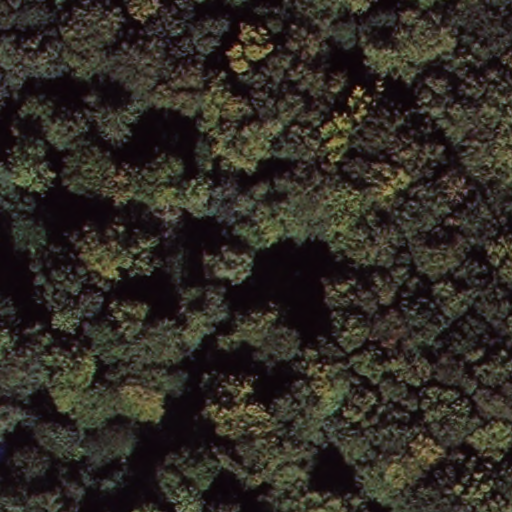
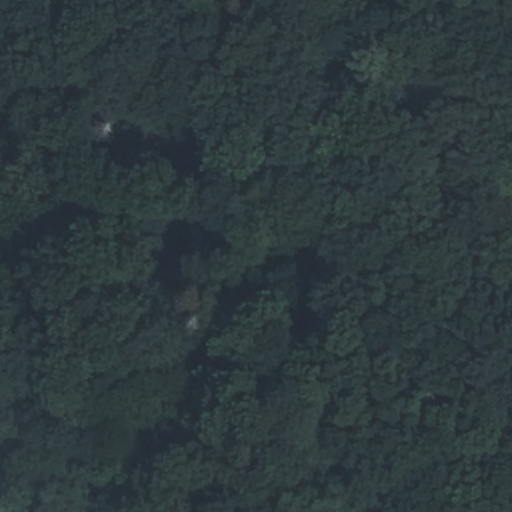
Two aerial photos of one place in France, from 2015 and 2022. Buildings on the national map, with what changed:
unchanged [(17,495),(0,478),(0,428),(42,471),(17,495)]

